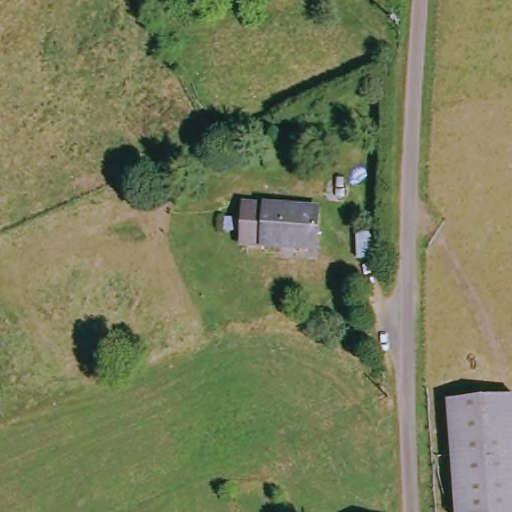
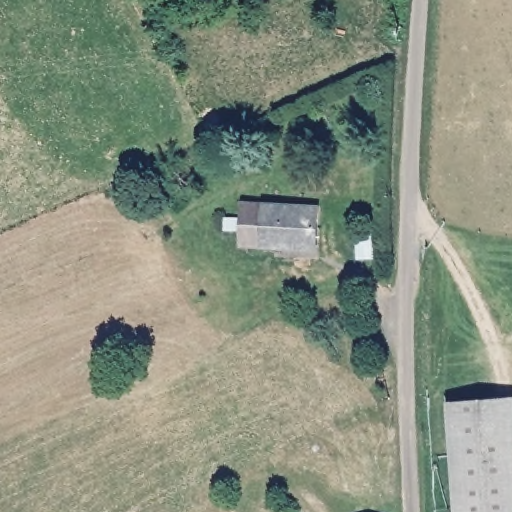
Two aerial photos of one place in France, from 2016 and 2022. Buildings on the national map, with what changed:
unchanged [(288,246),(248,243),(251,203),(324,207),(322,242),(322,248),(288,246)]
unchanged [(512,400),(512,512),(463,512),(453,404),(512,400)]

